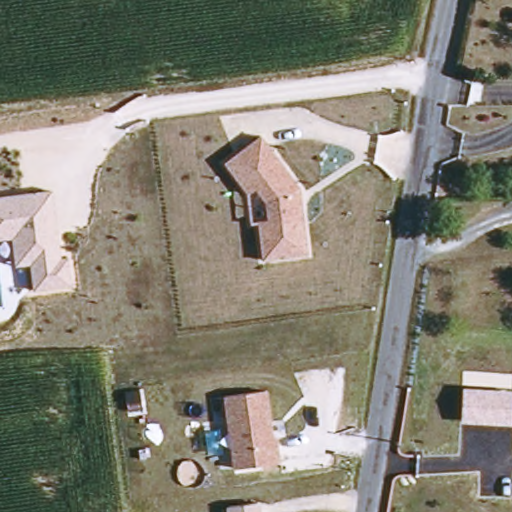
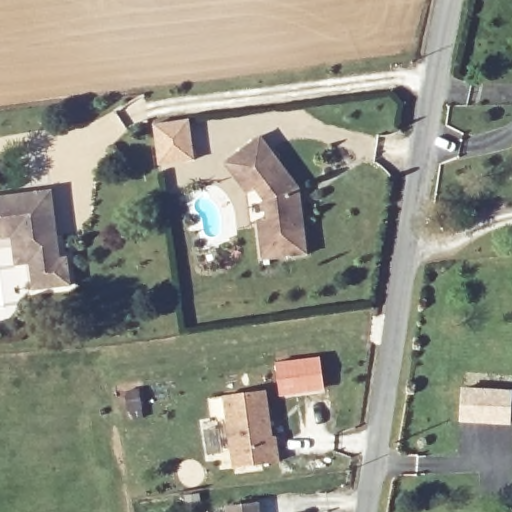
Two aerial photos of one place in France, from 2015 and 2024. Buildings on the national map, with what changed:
new [(192,119),(197,159),(163,163),(157,123),(192,119)]
unchanged [(258,219),(267,218),(266,200),(256,186),(248,192),(224,160),(262,134),(302,185),(310,254),(263,260),(258,219)]
unchanged [(67,256),(71,286),(30,290),(27,262),(13,265),(9,237),(0,238),(0,196),(52,189),(61,257),(67,256)]
new [(327,357),(330,387),(285,391),(282,361),(327,357)]
unchanged [(512,390),(512,426),(460,423),(462,388),(512,390)]
unchanged [(223,396),(267,389),(272,430),(277,437),(280,461),(233,467),(223,396)]
unchanged [(226,506),(260,501),(262,512),(227,512),(226,506)]

